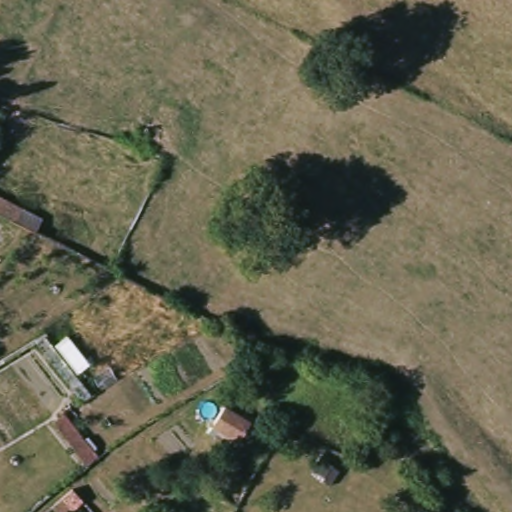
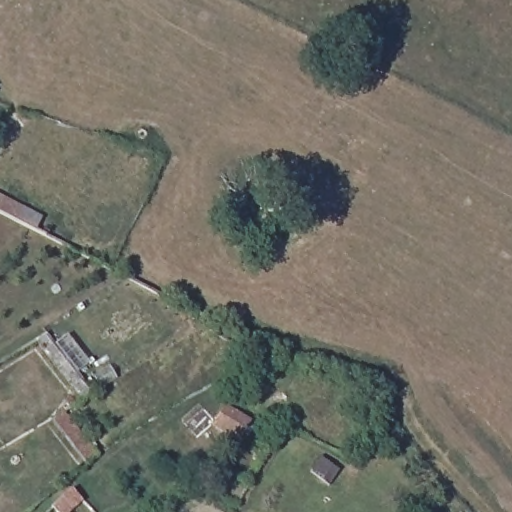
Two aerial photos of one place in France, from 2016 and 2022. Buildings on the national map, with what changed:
unchanged [(0,198),(46,221),(39,235),(0,214),(0,198)]
unchanged [(207,423),(220,405),(255,423),(245,441),(207,423)]
unchanged [(63,512),(53,501),(74,482),(85,495),(65,512),(63,512)]

